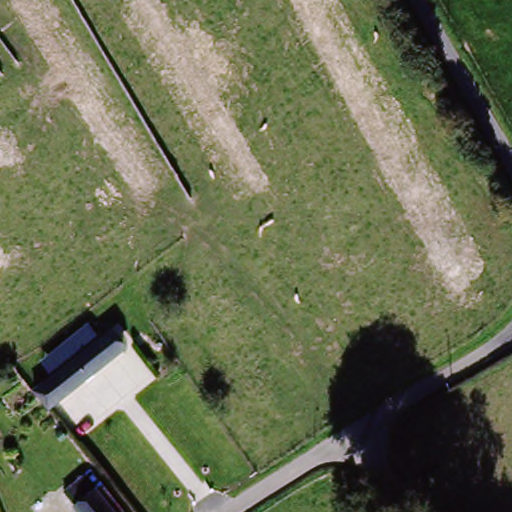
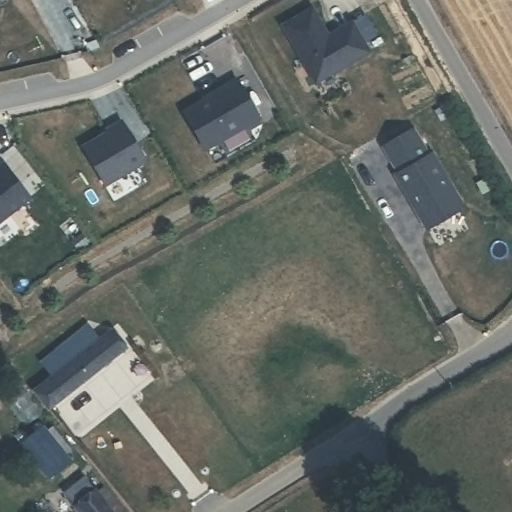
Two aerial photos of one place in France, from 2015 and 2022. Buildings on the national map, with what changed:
new [(283,28),(313,10),(330,40),(340,35),(338,32),(352,24),(370,54),(317,85),(283,28)]
new [(352,24),(365,15),(378,37),(365,45),(352,24)]
new [(202,148),(181,111),(221,87),(220,86),(234,77),(257,116),(202,148)]
new [(145,161),(104,185),(80,147),(106,131),(105,130),(120,120),(145,161)]
new [(381,147),(409,130),(424,156),(427,155),(457,206),(456,213),(425,230),(393,175),(396,172),(381,147)]
new [(0,222),(0,167),(2,165),(29,199),(0,222)]
new [(55,377),(41,361),(87,323),(99,340),(55,377)]
unchanged [(131,346),(51,412),(35,393),(115,327),(131,346)]
new [(49,423),(75,456),(50,475),(25,441),(49,423)]
unchanged [(86,482),(109,512),(74,512),(64,498),(86,482)]

